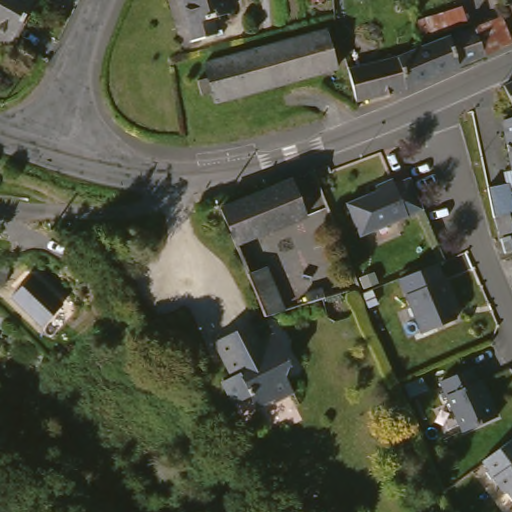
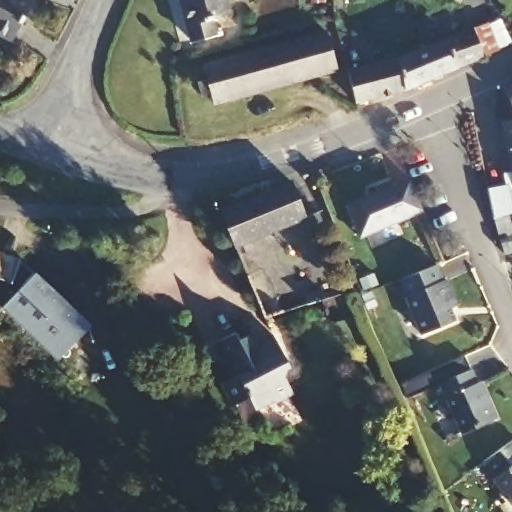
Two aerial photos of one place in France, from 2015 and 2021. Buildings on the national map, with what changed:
unchanged [(0,37),(0,0),(25,0),(4,39),(0,37)]
unchanged [(208,18),(212,36),(190,42),(176,0),(221,0),(226,14),(208,18)]
unchanged [(472,20),(500,9),(511,37),(485,48),(411,80),(354,98),(347,67),(347,66),(399,54),(416,46),(472,20)]
unchanged [(334,68),(211,105),(208,94),(198,95),(194,82),(205,80),(201,68),(323,30),(334,68)]
unchanged [(512,213),(512,215),(504,217),(512,241),(512,249),(499,254),(481,191),(499,182),(496,170),(504,167),(493,116),(500,114),(494,87),(512,81),(512,198),(508,199),(512,213)]
unchanged [(392,189),(409,181),(422,214),(357,241),(343,207),(375,194),(374,190),(390,182),(392,189)]
unchanged [(301,220),(232,252),(216,215),(284,184),(301,220)]
unchanged [(279,315),(263,321),(238,265),(252,258),(279,315)]
new [(21,262),(89,325),(65,353),(57,347),(77,323),(28,281),(22,287),(15,280),(21,262)]
demolished [(17,268),(10,289),(0,286),(0,263),(17,268)]
unchanged [(400,289),(438,273),(444,289),(447,287),(458,313),(452,316),(457,328),(422,342),(407,305),(400,289)]
demolished [(67,304),(49,325),(15,296),(33,275),(67,304)]
new [(28,281),(77,323),(57,347),(24,318),(7,304),(12,300),(22,287),(28,281)]
unchanged [(328,285),(333,295),(322,299),(318,288),(328,285)]
unchanged [(227,332),(243,325),(247,335),(262,328),(276,361),(273,362),(272,373),(273,372),(281,389),(263,396),(262,394),(240,403),(235,390),(220,397),(210,375),(219,370),(203,335),(224,325),(227,332)]
unchanged [(474,381),(481,400),(484,398),(491,417),(456,432),(436,381),(467,368),(473,382),(474,381)]
unchanged [(512,510),(503,497),(501,499),(489,483),(493,480),(482,465),(512,443),(512,510)]

